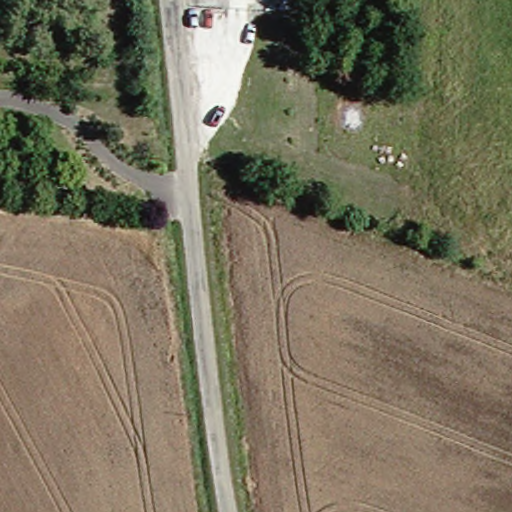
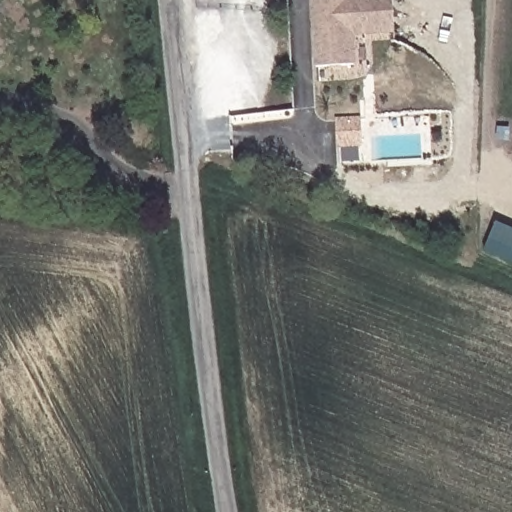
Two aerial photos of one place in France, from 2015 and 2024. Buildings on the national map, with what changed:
new [(394,31),(352,33),(353,64),(315,65),(314,26),(313,18),(312,0),(392,0),(394,31)]

